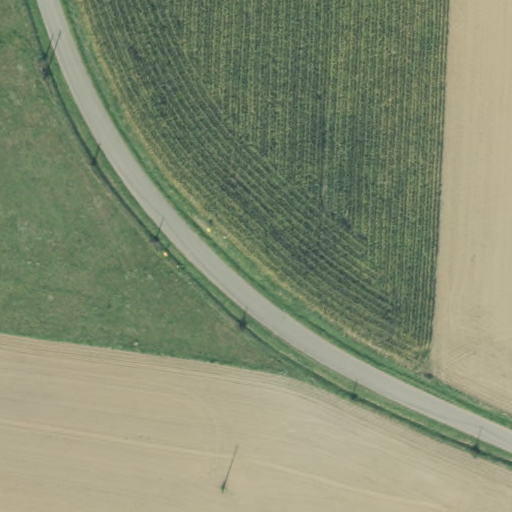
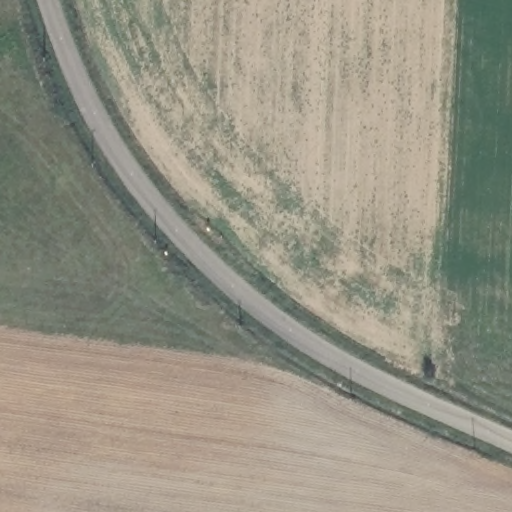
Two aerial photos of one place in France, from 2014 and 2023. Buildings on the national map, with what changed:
[]

